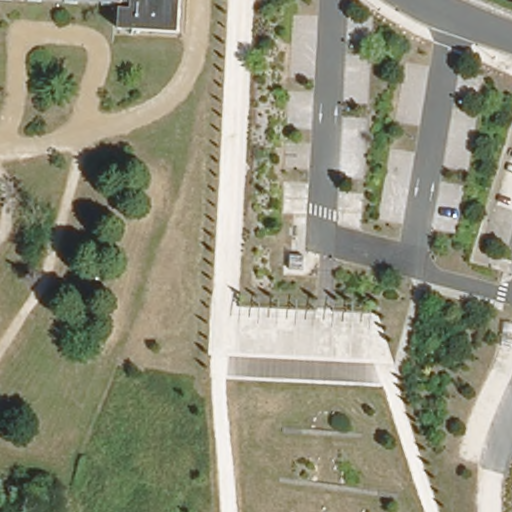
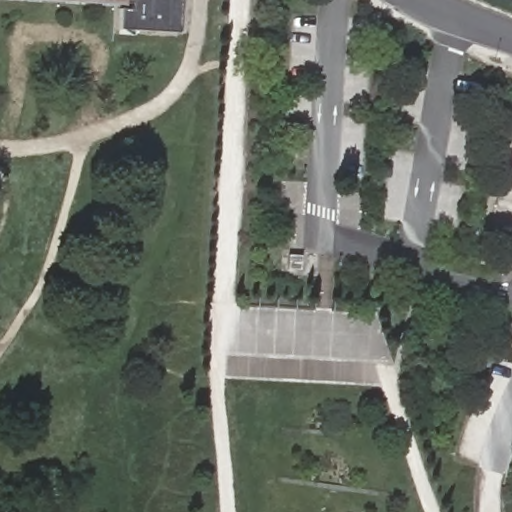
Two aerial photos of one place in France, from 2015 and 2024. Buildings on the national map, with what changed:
unchanged [(124,1),(121,1),(105,0),(124,0),(124,1)]
unchanged [(177,27),(117,23),(119,3),(131,4),(131,0),(179,0),(177,27)]

